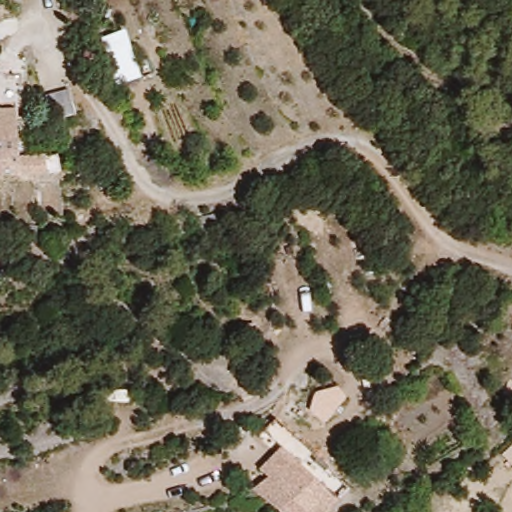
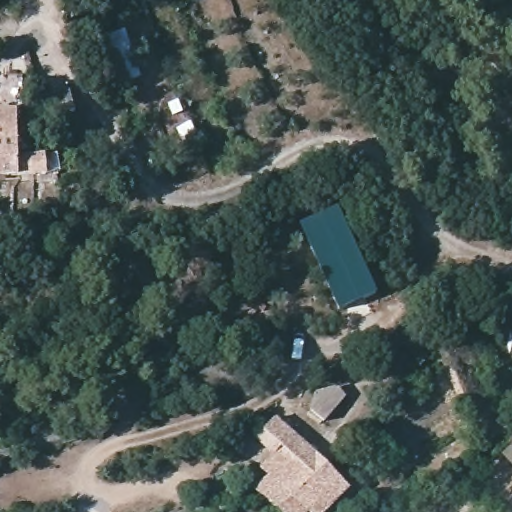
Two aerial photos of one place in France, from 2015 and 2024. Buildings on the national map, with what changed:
unchanged [(17,113),(20,156),(58,157),(59,177),(0,178),(0,113),(17,113)]
new [(339,206),(376,293),(337,311),(323,281),(299,224),(339,206)]
unchanged [(343,398),(323,422),(309,410),(313,394),(332,387),(343,398)]
unchanged [(254,492),(265,479),(258,471),(283,445),(301,464),(281,486),(307,512),(274,512),(254,492)]
unchanged [(512,445),(512,470),(500,457),(512,445)]
unchanged [(323,512),(307,512),(281,486),(301,464),(336,497),(323,512)]

